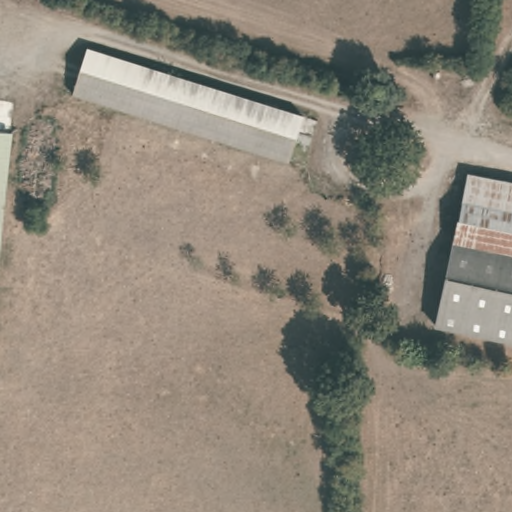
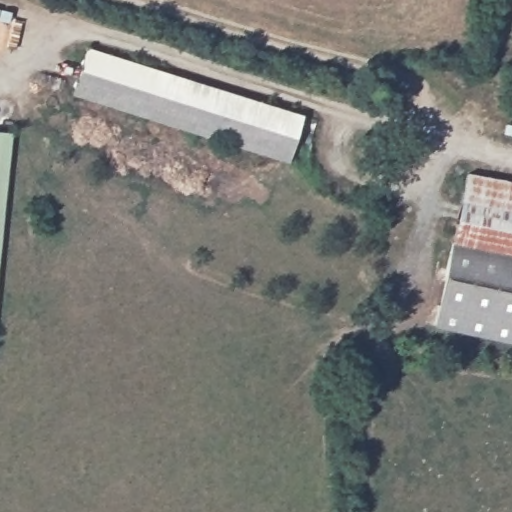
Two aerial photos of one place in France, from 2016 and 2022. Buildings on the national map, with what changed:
unchanged [(285,164),(68,93),(84,48),(300,116),(285,164)]
unchanged [(0,239),(0,135),(14,136),(0,239)]
unchanged [(466,179),(512,190),(512,335),(499,332),(433,315),(466,179)]

